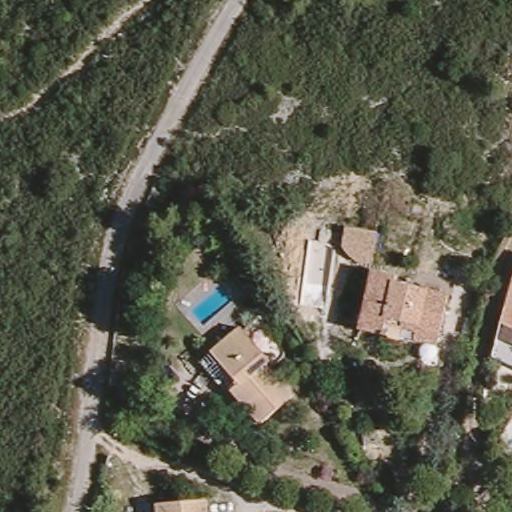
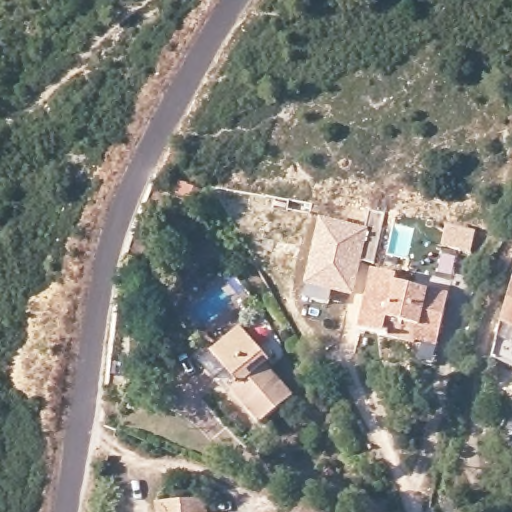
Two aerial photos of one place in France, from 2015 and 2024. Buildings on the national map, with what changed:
new [(350,223),(345,244),(348,252),(353,258),(359,262),(353,296),(304,286),(318,218),(350,223)]
new [(350,223),(382,230),(375,263),(369,264),(361,263),(353,258),(348,252),(345,244),(350,223)]
unchanged [(398,283),(397,289),(448,301),(437,352),(416,348),(416,340),(386,332),(384,342),(361,337),(373,278),(398,283)]
unchanged [(512,328),(502,323),(512,287),(512,328)]
unchanged [(512,355),(495,347),(502,323),(512,328),(512,355)]
unchanged [(268,363),(265,366),(291,397),(260,423),(232,390),(228,394),(202,363),(214,353),(240,330),(268,363)]
unchanged [(163,501),(212,497),(214,512),(164,512),(163,501)]

